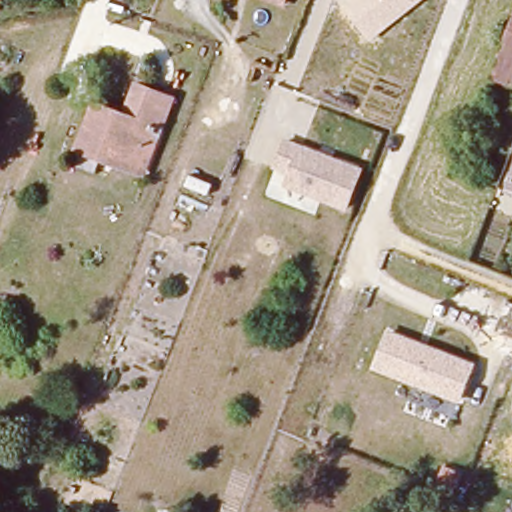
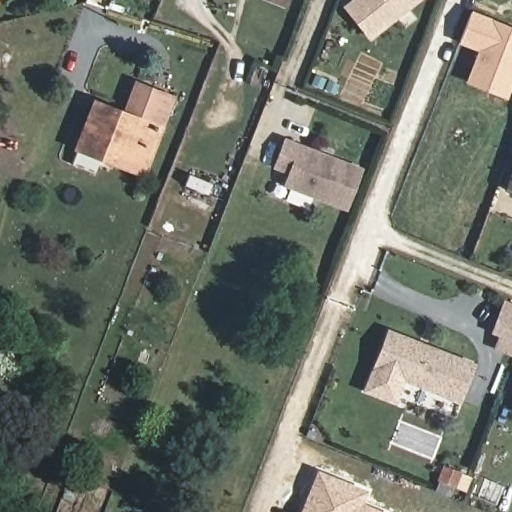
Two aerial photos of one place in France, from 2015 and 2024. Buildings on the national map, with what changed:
unchanged [(272,0),(284,0),(282,5),(272,0)]
unchanged [(346,4),(351,0),(425,0),(375,41),(346,4)]
new [(477,51),(459,44),(471,11),(512,27),(512,87),(508,99),(464,82),(477,51)]
demolished [(499,49),(512,12),(512,54),(499,49)]
unchanged [(103,165),(75,155),(92,105),(126,117),(137,87),(170,99),(159,129),(142,178),(103,165)]
unchanged [(366,169),(348,210),(285,189),(289,174),(274,169),(286,140),(366,169)]
unchanged [(510,160),(512,155),(512,161),(510,160)]
unchanged [(498,187),(510,160),(512,161),(512,193),(498,187)]
new [(498,330),(504,315),(512,318),(512,354),(499,349),(506,333),(498,330)]
unchanged [(476,363),(459,403),(374,371),(389,331),(476,363)]
new [(368,492),(364,503),(384,512),(300,512),(317,471),(368,492)]

